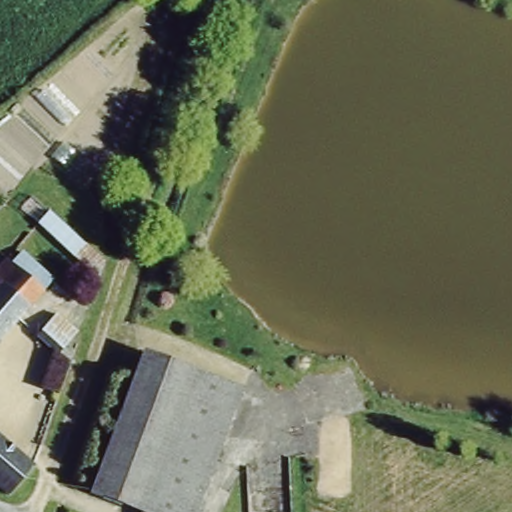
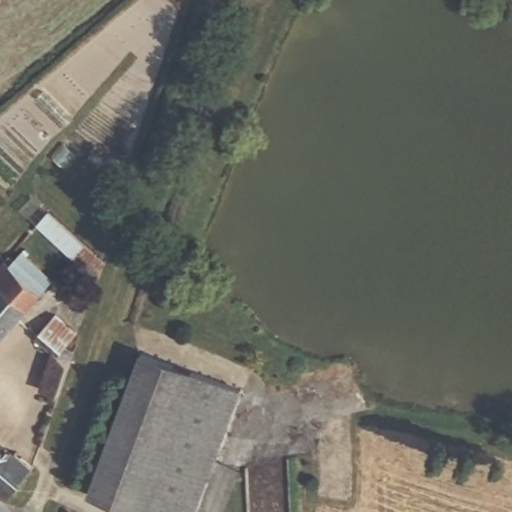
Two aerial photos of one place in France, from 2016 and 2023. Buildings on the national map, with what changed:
unchanged [(35,225),(51,208),(107,260),(98,281),(35,225)]
unchanged [(27,304),(0,336),(0,278),(9,285),(27,304)]
unchanged [(35,377),(55,357),(36,338),(47,327),(77,357),(62,403),(35,377)]
unchanged [(200,512),(159,512),(134,503),(95,488),(145,351),(245,387),(200,512)]
unchanged [(13,499),(0,488),(0,436),(27,458),(13,499)]
unchanged [(159,512),(131,512),(134,503),(159,512)]

